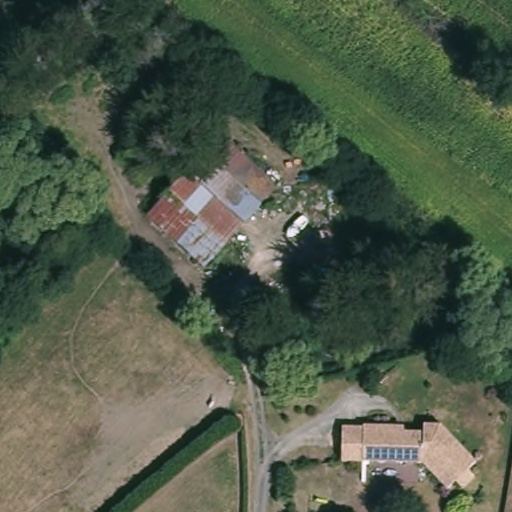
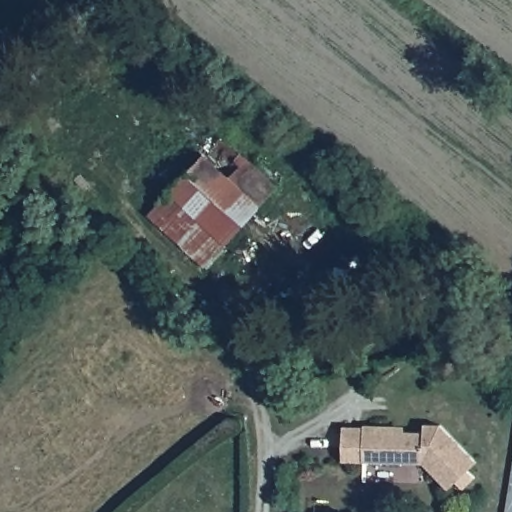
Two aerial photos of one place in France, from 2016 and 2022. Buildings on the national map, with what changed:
unchanged [(278,190),(210,267),(147,214),(219,136),(278,190)]
unchanged [(347,423),(368,425),(368,422),(400,424),(400,429),(428,430),(428,422),(445,425),(478,465),(470,472),(476,480),(464,490),(457,482),(449,490),(426,462),(345,457),(347,423)]

